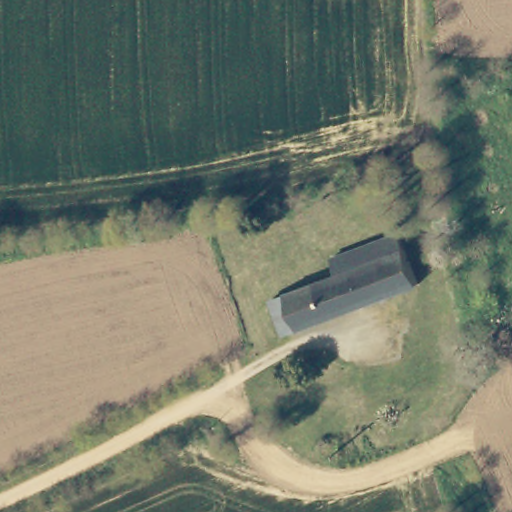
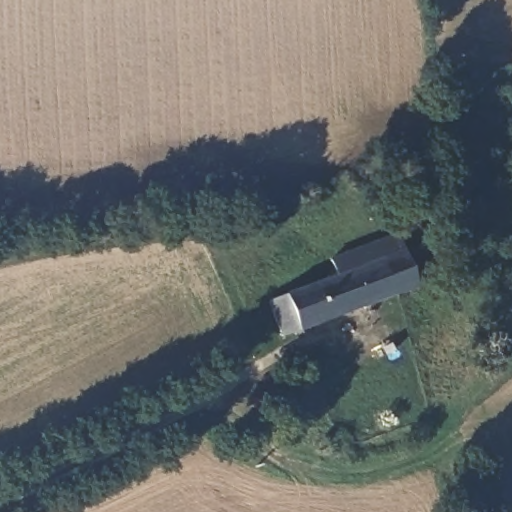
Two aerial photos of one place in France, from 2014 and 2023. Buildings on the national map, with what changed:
unchanged [(294,331),(280,296),(332,276),(326,260),(395,233),(416,284),(294,331)]

